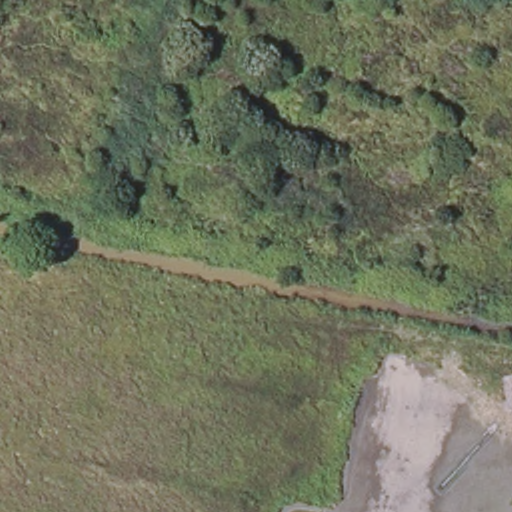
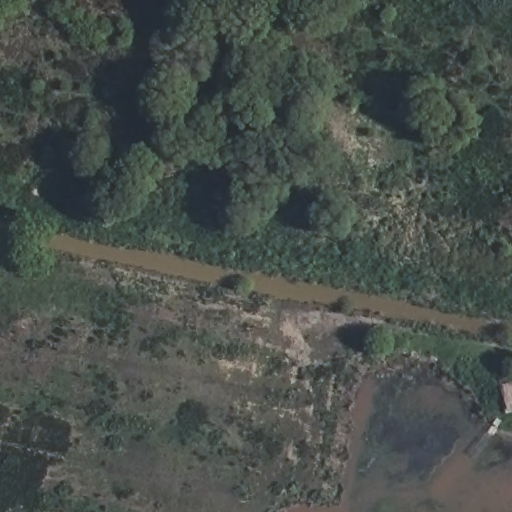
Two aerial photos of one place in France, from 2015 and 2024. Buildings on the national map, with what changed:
unchanged [(512,373),(512,408),(500,377),(512,373)]

